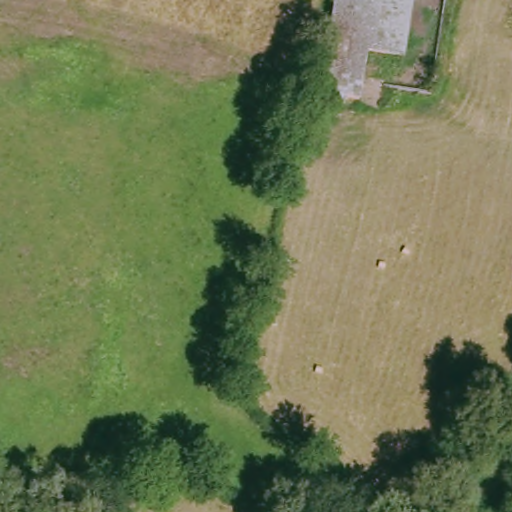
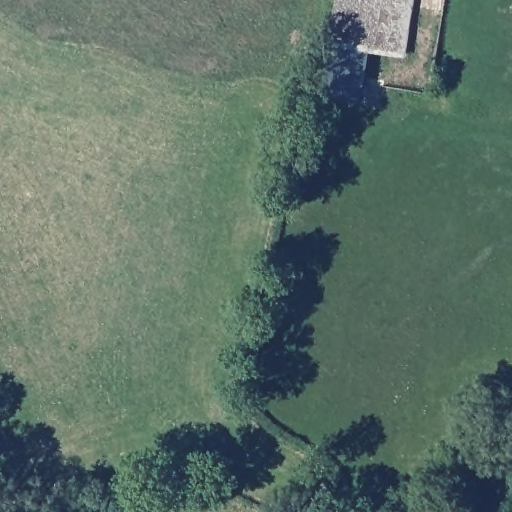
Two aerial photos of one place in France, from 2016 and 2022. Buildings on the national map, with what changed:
unchanged [(325,93),(338,0),(412,0),(407,52),(371,47),(367,82),(366,99),(325,93)]

